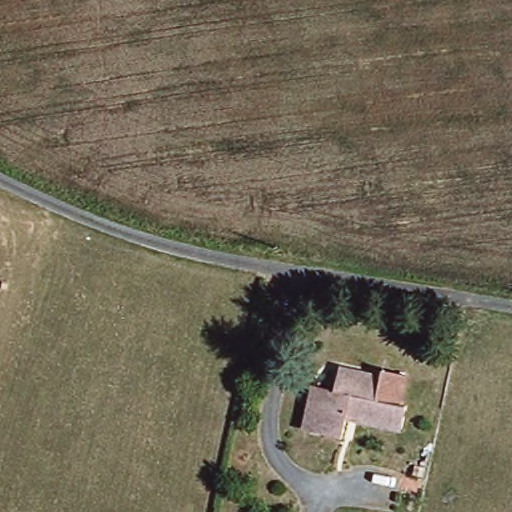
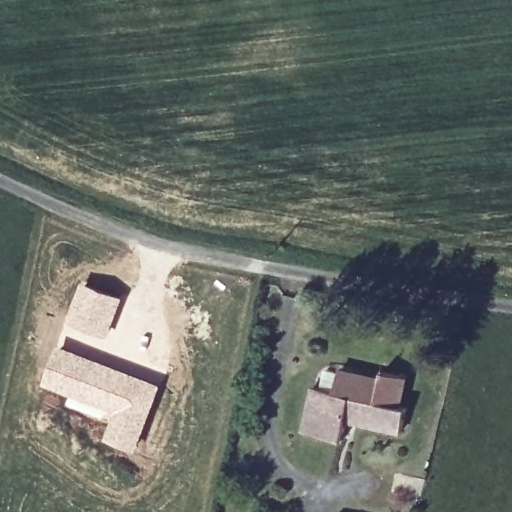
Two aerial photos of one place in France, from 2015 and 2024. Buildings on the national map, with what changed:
new [(82,281),(124,296),(109,337),(67,320),(82,281)]
new [(60,345),(113,363),(163,383),(138,450),(104,438),(109,424),(63,406),(68,394),(43,385),(60,345)]
unchanged [(316,391),(338,395),(343,373),(381,380),(383,373),(406,378),(401,408),(407,410),(402,434),(349,423),(344,444),(307,437),(316,391)]

